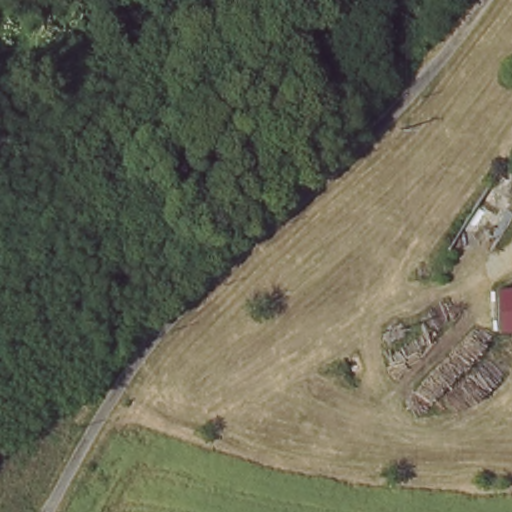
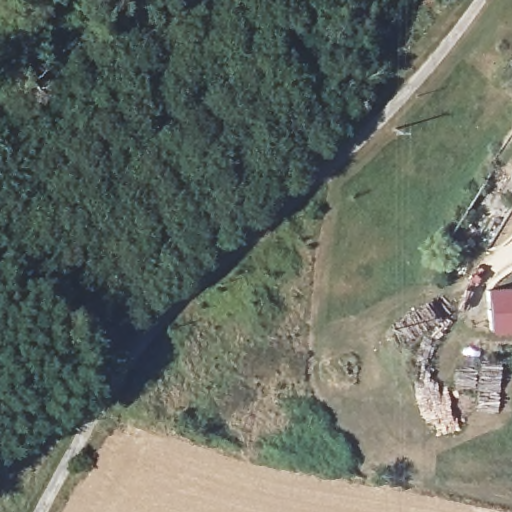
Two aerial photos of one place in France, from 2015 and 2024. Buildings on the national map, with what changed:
unchanged [(512,285),(512,324),(502,324),(500,285),(512,285)]

